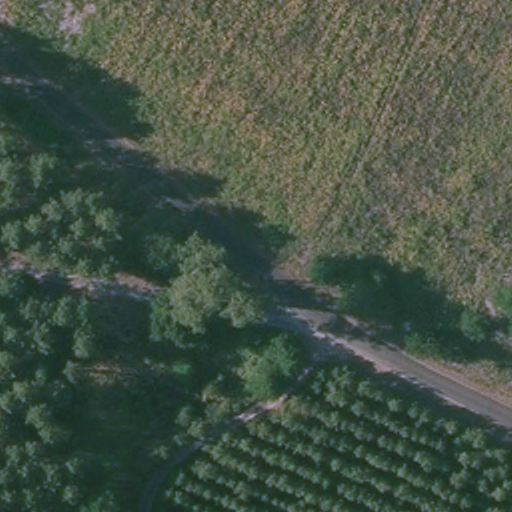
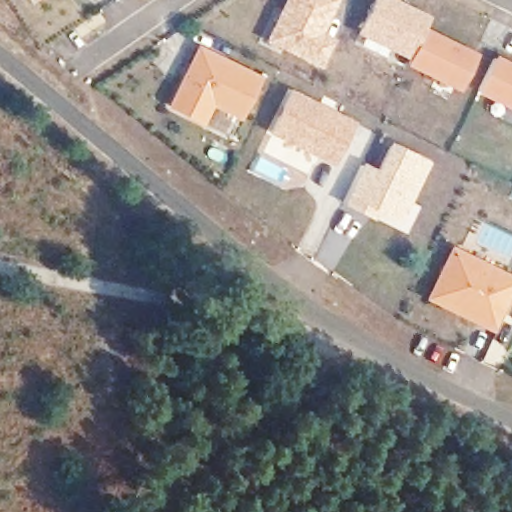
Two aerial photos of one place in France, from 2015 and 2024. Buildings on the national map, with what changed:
new [(34,0),(38,0),(35,2),(34,0)]
new [(267,42),(287,0),(338,0),(323,35),(336,41),(324,67),(267,42)]
new [(374,0),(395,0),(430,17),(424,29),(478,55),(461,94),(408,67),(411,62),(357,34),(374,0)]
new [(204,126),(169,107),(198,47),(263,79),(242,120),(213,107),(204,126)]
new [(478,92),(497,56),(512,64),(512,109),(478,92)]
new [(289,88),(318,102),(319,100),(354,120),(331,165),(287,145),(265,132),(289,88)]
new [(377,211),(374,219),(343,205),(363,165),(377,171),(389,143),(431,162),(397,221),(377,211)]
new [(427,300),(452,247),(512,277),(512,295),(494,332),(427,300)]

